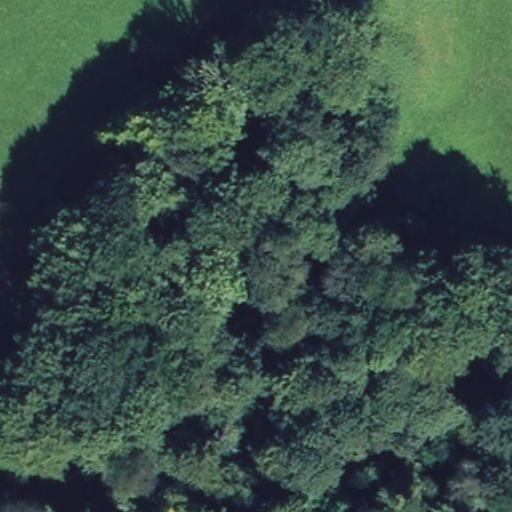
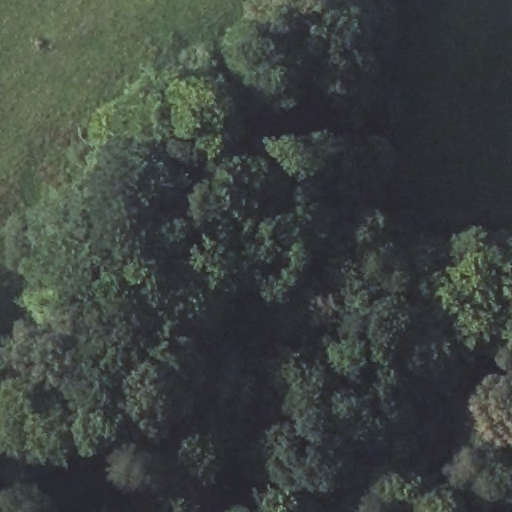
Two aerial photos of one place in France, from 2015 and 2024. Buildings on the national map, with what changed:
unchanged [(7,415),(0,412),(0,385),(15,390),(7,415)]

